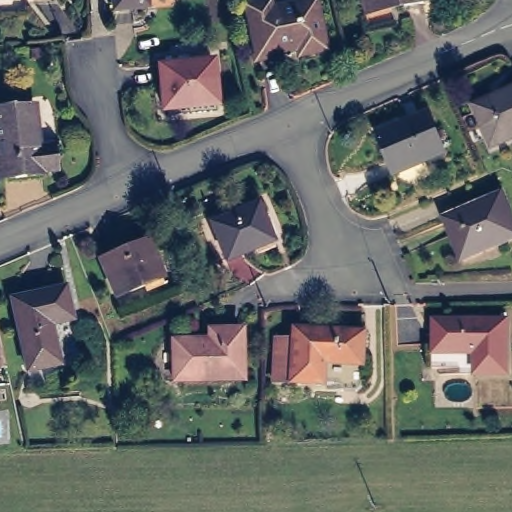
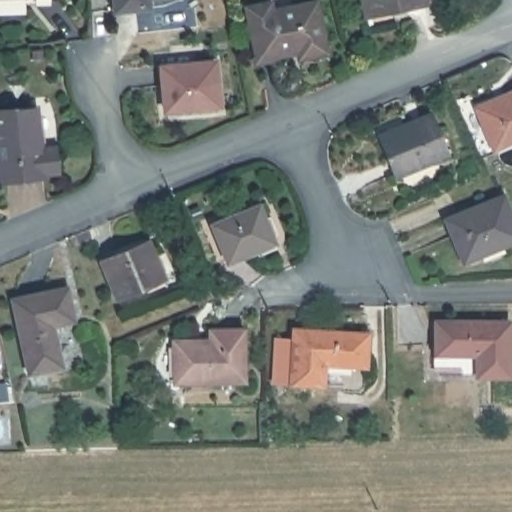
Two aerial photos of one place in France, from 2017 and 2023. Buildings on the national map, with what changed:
unchanged [(150,0),(150,13),(118,15),(117,0),(159,0),(150,0)]
unchanged [(423,4),(403,8),(402,3),(362,11),(360,0),(422,0),(423,4)]
unchanged [(321,4),(330,51),(308,55),(306,49),(266,56),(256,8),(275,4),(277,13),(321,4)]
unchanged [(221,110),(167,115),(163,70),(217,65),(221,110)]
unchanged [(501,150),(482,106),(512,94),(512,145),(501,150)]
unchanged [(451,151),(398,173),(381,130),(434,107),(451,151)]
unchanged [(56,152),(58,177),(45,177),(46,181),(1,185),(0,180),(0,115),(37,111),(41,153),(56,152)]
unchanged [(512,225),(512,241),(462,262),(444,219),(501,196),(512,225)]
unchanged [(276,243),(229,263),(214,224),(260,206),(276,243)]
unchanged [(161,278),(114,298),(97,261),(145,242),(161,278)]
unchanged [(70,321),(48,326),(56,366),(27,372),(12,300),(62,288),(70,321)]
unchanged [(511,376),(481,376),(481,355),(438,354),(439,321),(511,322),(511,376)]
unchanged [(283,340),(301,340),(302,328),(376,333),(374,367),(332,364),(330,386),(297,383),(281,382),(283,340)]
unchanged [(246,381),(177,382),(177,341),(212,340),(213,330),(245,330),(246,381)]

